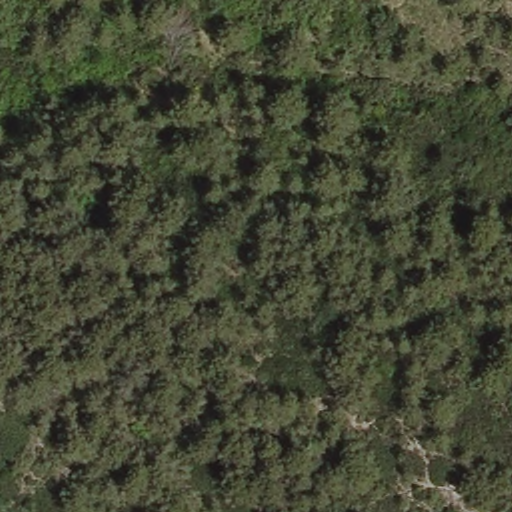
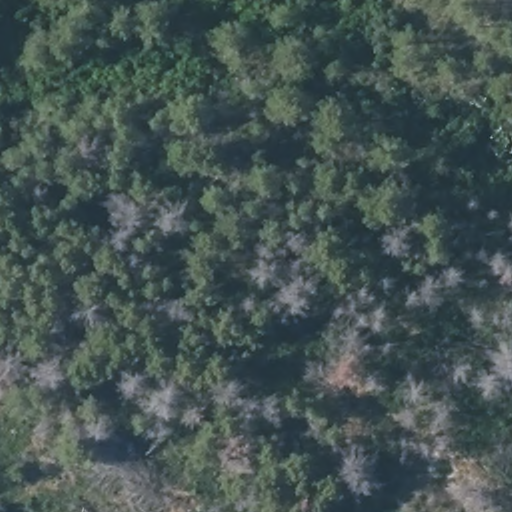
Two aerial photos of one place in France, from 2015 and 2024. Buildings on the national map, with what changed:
[]

